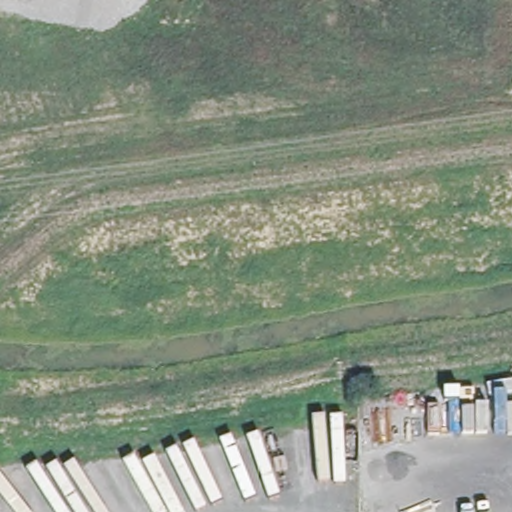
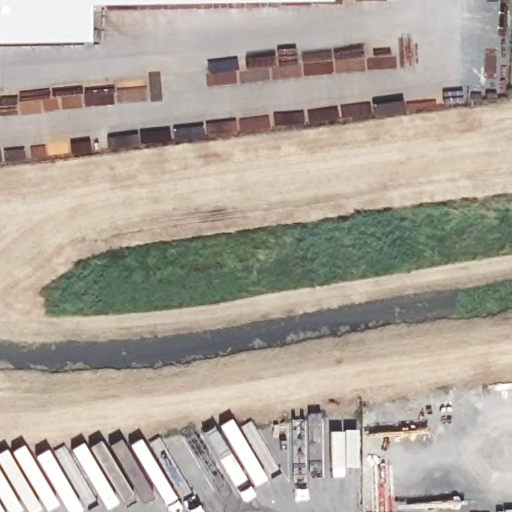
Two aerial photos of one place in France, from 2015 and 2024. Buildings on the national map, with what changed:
new [(87,38),(0,41),(0,0),(261,0),(87,3),(87,38)]

